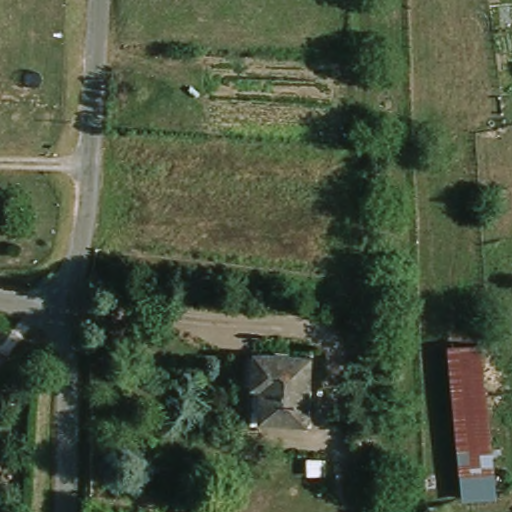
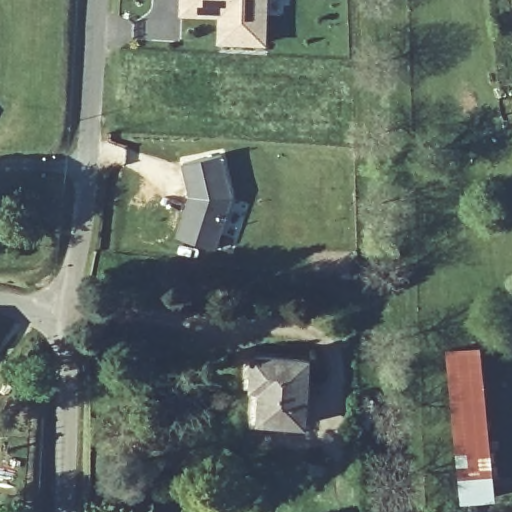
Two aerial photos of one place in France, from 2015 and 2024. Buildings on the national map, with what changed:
new [(219,42),(220,15),(182,14),(182,0),(267,0),(266,42),(219,42)]
new [(192,195),(184,162),(222,154),(232,196),(216,247),(179,236),(192,195)]
unchanged [(490,495),(458,501),(449,344),(481,342),(490,495)]
unchanged [(309,358),(305,423),(252,420),(255,355),(309,358)]

